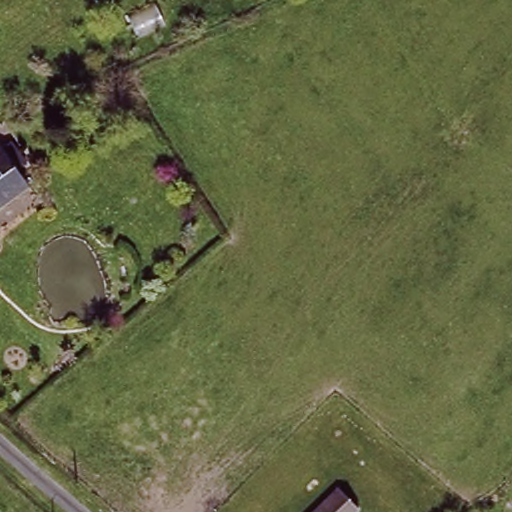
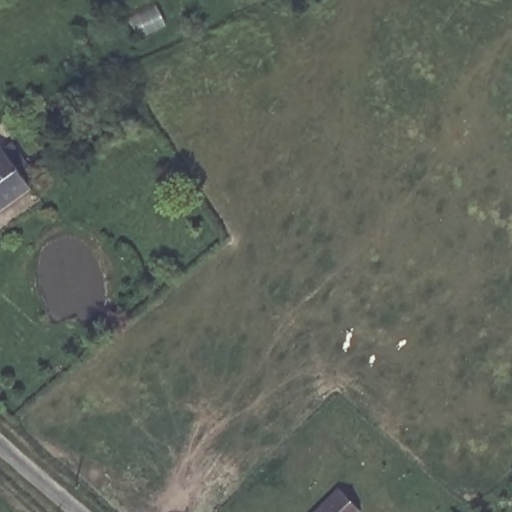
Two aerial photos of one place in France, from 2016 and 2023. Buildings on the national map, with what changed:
unchanged [(20,156),(24,161),(18,166),(30,183),(0,206),(0,143),(13,161),(20,156)]
unchanged [(349,512),(314,512),(332,495),(349,512)]

